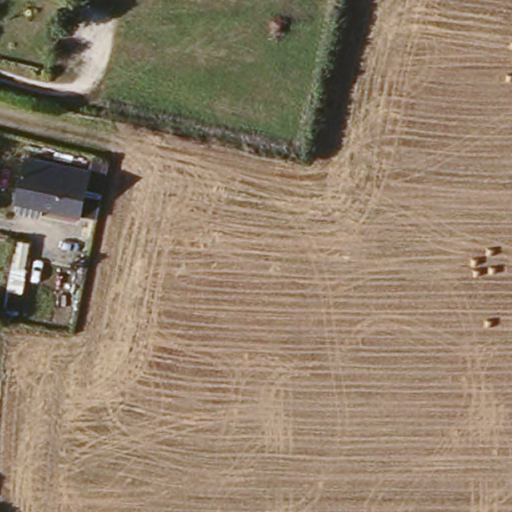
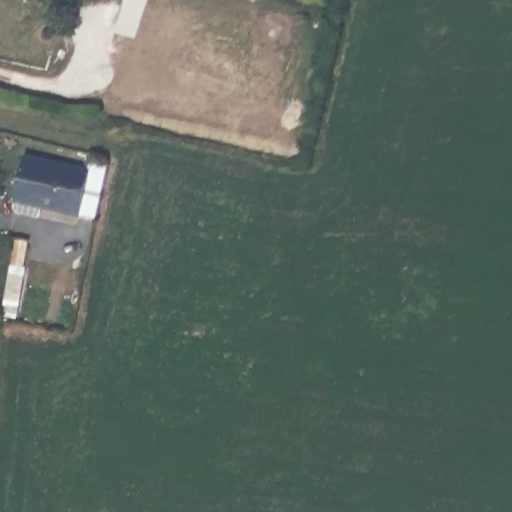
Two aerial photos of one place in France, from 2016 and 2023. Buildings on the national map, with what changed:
unchanged [(23,184),(31,148),(94,163),(84,207),(43,198),(21,192),(23,184)]

